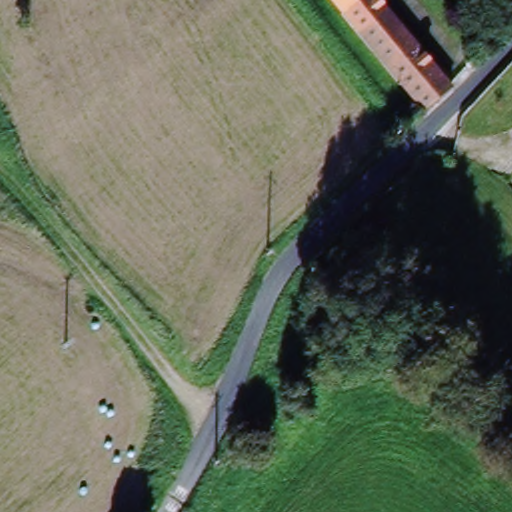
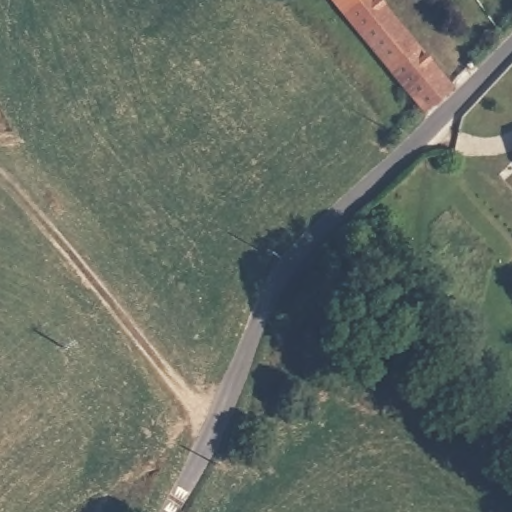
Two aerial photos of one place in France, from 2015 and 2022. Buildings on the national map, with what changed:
unchanged [(362,0),(347,12),(338,0),(362,0)]
unchanged [(385,0),(458,88),(430,111),(365,33),(347,12),(362,0),(385,0)]

